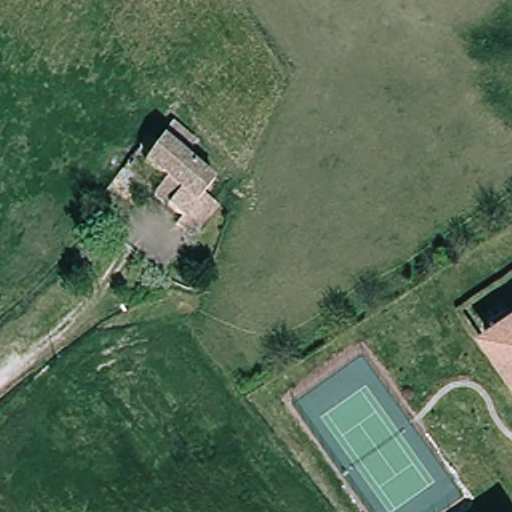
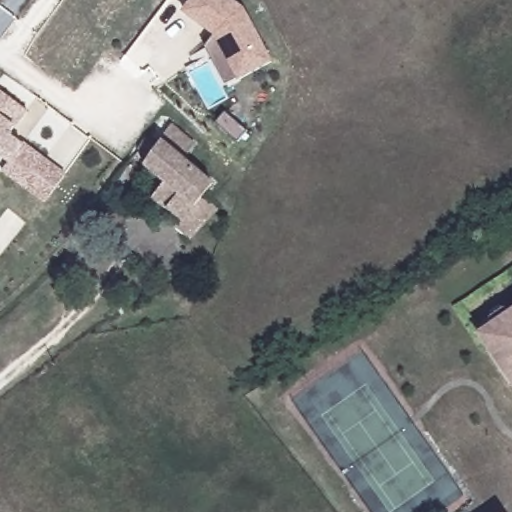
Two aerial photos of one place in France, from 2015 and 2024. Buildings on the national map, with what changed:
new [(192,0),(228,0),(243,11),(271,61),(239,79),(225,86),(204,48),(214,35),(184,12),(192,0)]
new [(29,110),(16,126),(11,133),(24,143),(66,173),(45,203),(2,171),(9,163),(0,156),(0,89),(29,110)]
new [(224,111),(249,128),(241,141),(216,124),(224,111)]
unchanged [(207,196),(221,209),(194,240),(178,226),(184,219),(156,196),(168,181),(147,163),(151,158),(141,148),(151,136),(160,143),(176,124),(200,144),(188,159),(217,183),(207,196)]
unchanged [(481,337),(487,333),(503,323),(512,317),(512,386),(490,351),(481,337)]

